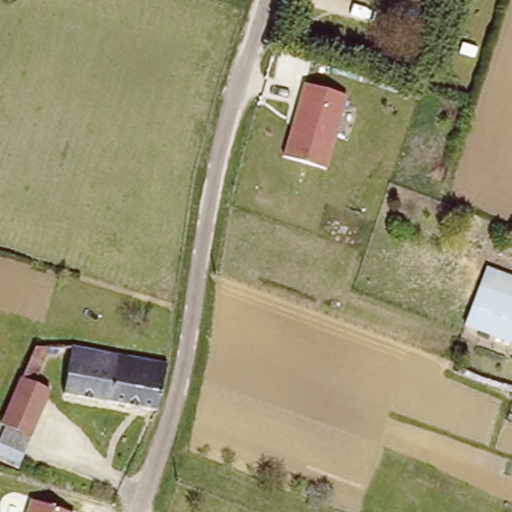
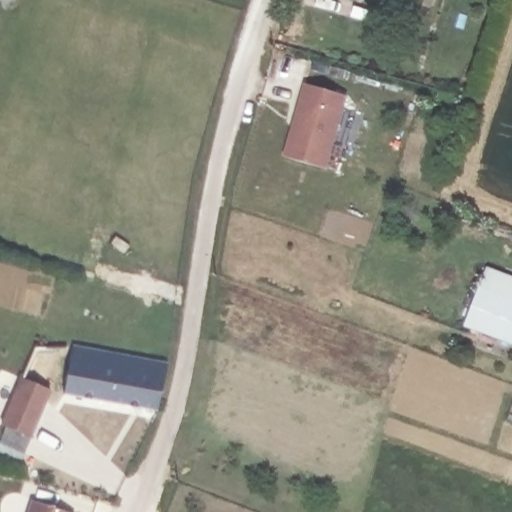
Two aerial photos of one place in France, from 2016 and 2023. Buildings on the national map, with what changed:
unchanged [(300,85),(343,97),(324,171),(280,156),(300,85)]
unchanged [(512,280),(512,335),(470,320),(478,297),(487,272),(512,280)]
unchanged [(74,350),(167,367),(153,417),(65,397),(74,350)]
unchanged [(0,469),(0,441),(3,433),(0,432),(27,357),(49,357),(32,397),(45,402),(27,445),(15,475),(0,469)]
unchanged [(68,512),(25,512),(30,498),(68,512)]

